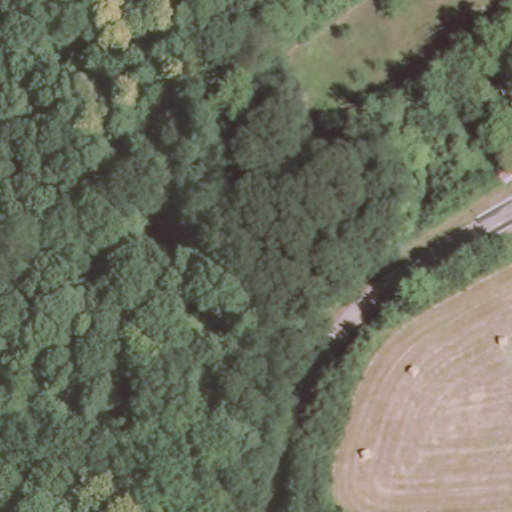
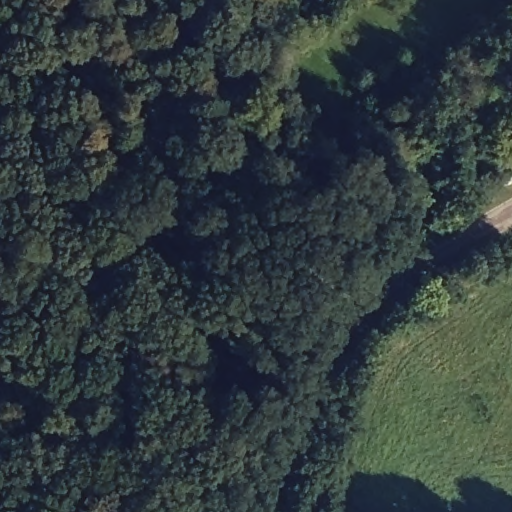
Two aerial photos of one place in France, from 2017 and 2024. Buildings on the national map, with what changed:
unchanged [(501,179),(495,169),(512,159),(512,173),(501,179)]

